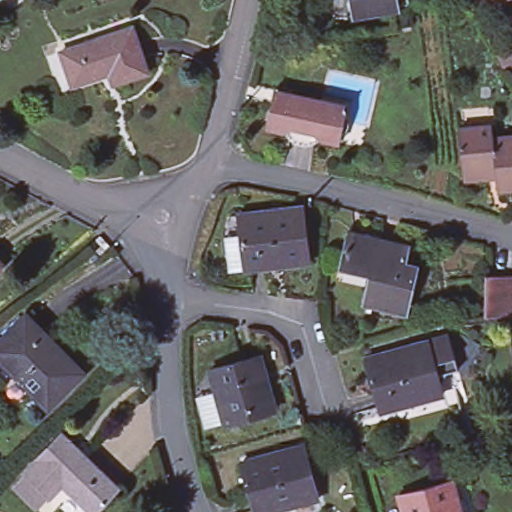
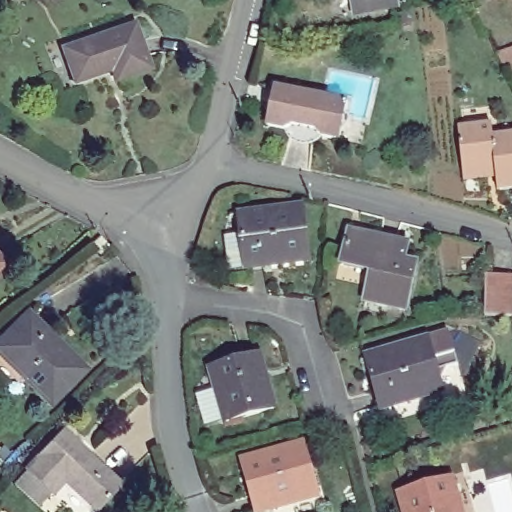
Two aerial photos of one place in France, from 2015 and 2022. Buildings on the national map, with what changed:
unchanged [(397,0),(399,9),(384,15),(345,21),(342,0),(397,0)]
unchanged [(128,22),(144,68),(109,79),(105,66),(97,69),(97,71),(69,81),(57,45),(128,22)]
unchanged [(512,53),(512,64),(507,55),(512,53)]
unchanged [(347,106),(339,141),(266,125),(274,89),(347,106)]
unchanged [(490,119),(492,132),(512,131),(512,181),(492,183),(491,171),(460,174),(460,167),(455,122),(490,119)]
unchanged [(230,233),(247,231),(244,209),(308,202),(314,256),(250,265),(235,267),(230,233)]
unchanged [(369,239),(367,245),(387,250),(389,243),(402,246),(399,264),(411,267),(400,311),(360,302),(367,273),(335,266),(344,233),(369,239)]
unchanged [(104,238),(114,250),(102,259),(93,247),(104,238)]
unchanged [(2,260),(0,262),(0,258),(2,260)]
unchanged [(484,275),(512,276),(512,316),(483,314),(484,275)]
unchanged [(82,373),(50,405),(0,356),(0,345),(27,317),(31,314),(50,334),(47,337),(82,373)]
unchanged [(377,401),(361,348),(423,330),(443,323),(444,323),(454,357),(449,359),(440,360),(435,375),(437,384),(377,401)]
unchanged [(203,395),(217,391),(210,365),(260,351),(276,404),(225,418),(210,422),(203,395)]
unchanged [(52,491),(49,488),(39,499),(18,479),(29,468),(27,467),(62,429),(119,482),(95,506),(90,512),(75,512),(52,491)]
unchanged [(304,444),(319,498),(267,512),(255,512),(242,461),(304,444)]
unchanged [(452,480),(461,512),(404,512),(400,495),(452,480)]

